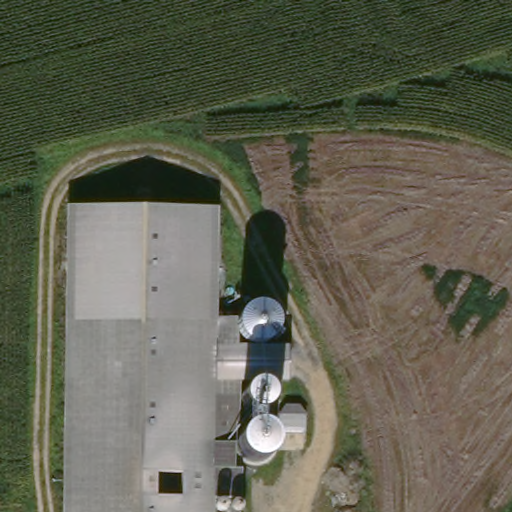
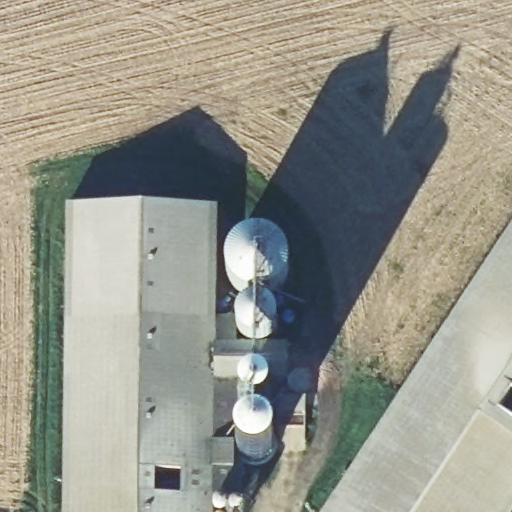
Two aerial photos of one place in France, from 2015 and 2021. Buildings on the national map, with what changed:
unchanged [(215,208),(210,512),(62,512),(65,206),(215,208)]
new [(512,227),(512,512),(322,512),(512,227)]
new [(274,241),(282,246),(286,254),(290,262),(290,272),(288,279),(283,287),(277,293),(270,296),(258,299),(258,305),(262,305),(270,308),(275,314),(278,323),(277,331),(274,337),(270,341),(266,343),(260,346),(254,347),(249,346),(241,341),(239,337),(239,318),(240,313),(244,310),(246,307),(253,305),(254,299),(247,298),(239,294),(230,286),(226,276),(225,268),(226,258),(230,250),(237,243),(245,238),(255,236),(265,237),(274,241)]
new [(289,383),(240,383),(238,442),(211,442),(214,319),(236,318),(239,318),(239,348),(254,347),(288,346),(289,383)]
unchanged [(242,457),(237,446),(238,438),(242,431),(241,399),(242,393),(247,388),(256,385),(265,385),(268,391),(269,400),(268,430),(272,436),(275,446),(271,455),(265,461),(258,464),(252,464),(242,457)]

